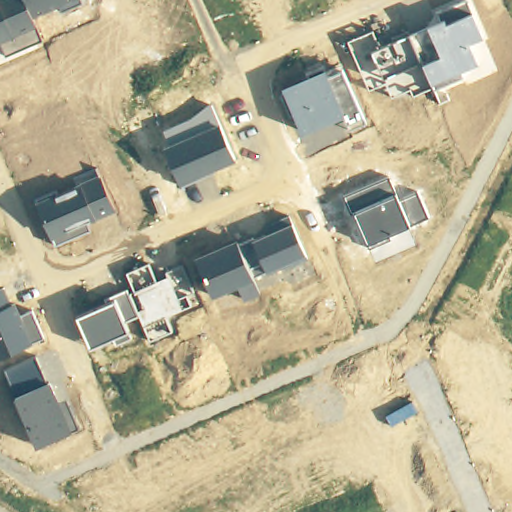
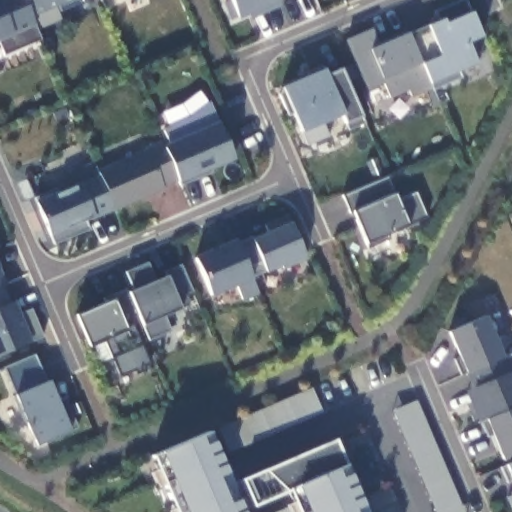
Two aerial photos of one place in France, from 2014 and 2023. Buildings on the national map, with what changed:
unchanged [(60,13),(58,6),(32,17),(36,26),(42,40),(6,56),(0,41),(0,0),(81,0),(82,3),(60,13)]
unchanged [(253,20),(250,13),(236,19),(228,0),(278,0),(282,8),(253,20)]
unchanged [(466,0),(471,12),(482,38),(467,44),(476,65),(458,71),(461,78),(432,89),(413,98),(409,90),(391,98),(385,84),(368,90),(347,41),(371,30),(379,46),(408,34),(427,26),(441,20),(437,11),(464,0),(466,0)]
unchanged [(325,70),(338,64),(361,117),(364,123),(349,130),(346,125),(342,116),(301,133),(282,86),(325,70)]
unchanged [(168,144),(163,130),(192,117),(210,102),(219,123),(235,162),(179,185),(163,146),(168,144)]
unchanged [(97,169),(145,149),(143,146),(161,139),(163,146),(179,185),(115,211),(99,175),(97,169)]
unchanged [(78,185),(99,175),(115,211),(86,223),(89,231),(54,245),(50,238),(35,202),(78,185)]
unchanged [(388,178),(398,201),(416,194),(428,219),(408,227),(388,236),(389,241),(368,249),(366,243),(354,214),(343,197),(388,178)]
unchanged [(237,243),(252,236),(253,239),(273,232),(269,223),(288,215),(291,223),(304,255),(306,261),(283,271),(281,266),(266,272),(252,279),(259,295),(243,301),(237,287),(212,297),(195,257),(236,240),(237,243)]
unchanged [(148,263),(155,281),(166,277),(164,272),(182,265),(193,293),(185,296),(189,306),(165,316),(171,332),(149,342),(137,316),(135,311),(140,309),(125,273),(148,263)]
unchanged [(0,287),(0,274),(4,286),(0,287)]
unchanged [(10,303),(15,300),(21,315),(32,310),(44,339),(30,344),(0,355),(0,287),(4,286),(10,303)]
unchanged [(137,316),(124,322),(127,330),(131,338),(116,345),(113,338),(90,347),(77,317),(106,304),(104,297),(126,288),(135,311),(137,316)]
new [(486,316),(503,359),(512,355),(512,453),(501,458),(493,437),(485,419),(466,372),(449,331),(486,316)]
unchanged [(34,356),(46,383),(50,381),(58,401),(66,396),(79,426),(72,430),(35,446),(14,398),(3,369),(34,356)]
new [(160,453),(208,433),(312,388),(323,413),(219,457),(230,484),(334,440),(344,465),(364,512),(299,512),(289,489),(242,509),(243,512),(175,512),(151,457),(160,453)]
new [(418,401),(463,512),(436,512),(392,411),(418,401)]
unchanged [(512,463),(512,482),(504,466),(512,463)]
unchanged [(510,510),(504,495),(512,492),(512,509),(510,510)]

